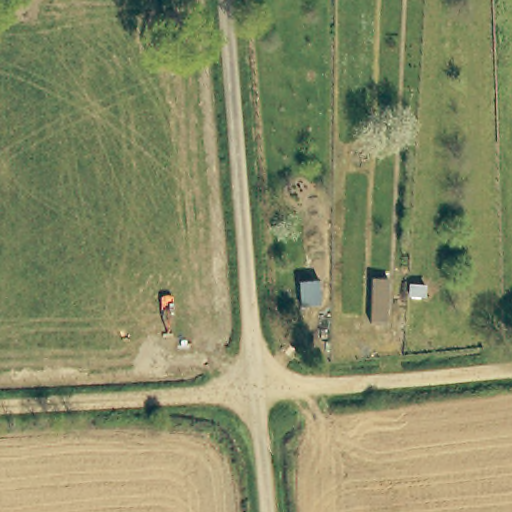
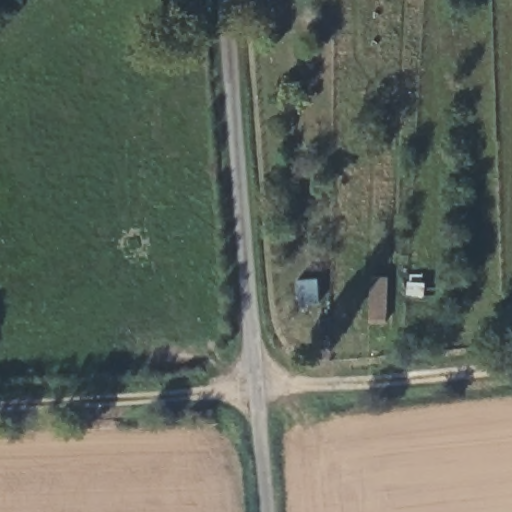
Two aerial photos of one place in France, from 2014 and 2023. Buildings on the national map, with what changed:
unchanged [(389,277),(388,323),(382,323),(373,323),(373,277),(381,277),(389,277)]

